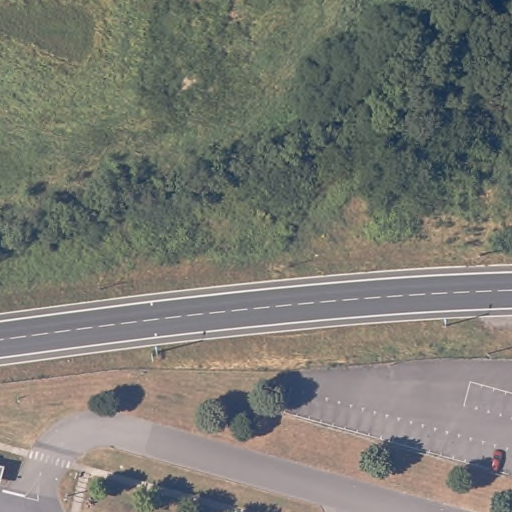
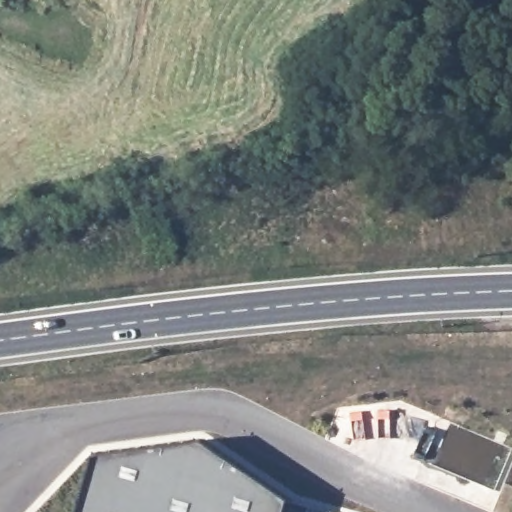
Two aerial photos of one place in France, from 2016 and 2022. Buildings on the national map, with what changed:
new [(201,439),(287,498),(283,512),(78,512),(94,455),(201,439)]

